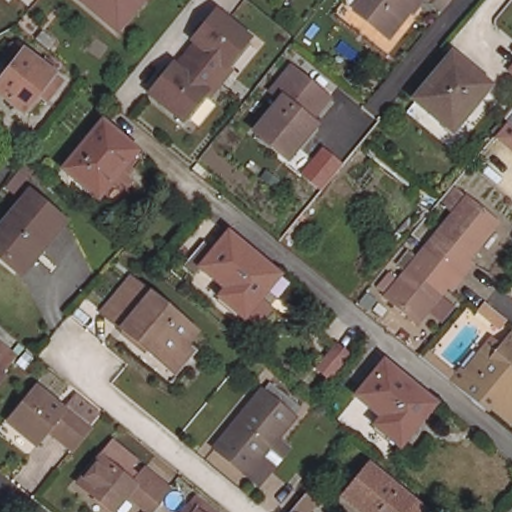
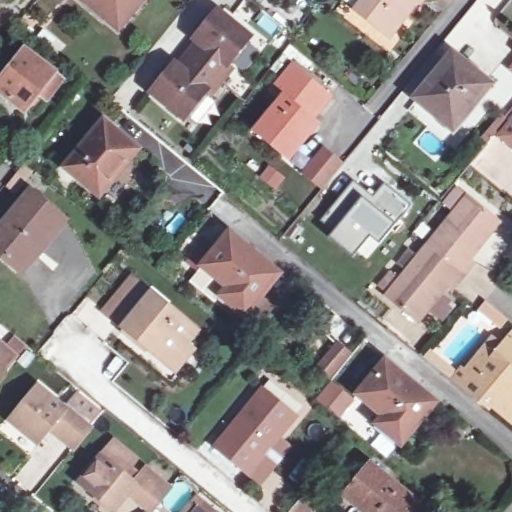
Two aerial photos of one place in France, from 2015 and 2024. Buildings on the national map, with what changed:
unchanged [(85,0),(146,0),(127,24),(121,30),(85,0)]
unchanged [(420,1),(387,40),(354,13),(364,0),(418,0),(420,1)]
unchanged [(189,53),(199,41),(195,37),(219,10),(252,35),(229,63),(232,66),(222,80),(189,53)]
unchanged [(54,72),(45,83),(50,87),(35,109),(30,105),(25,110),(0,91),(0,78),(23,48),(54,72)]
unchanged [(222,80),(212,92),(209,90),(185,117),(154,90),(177,61),(180,65),(189,53),(222,80)]
unchanged [(492,84),(478,102),(474,100),(452,125),(419,100),(455,55),(492,84)]
unchanged [(280,150),(255,129),(280,97),(271,90),(292,66),(327,95),(308,119),(315,124),(297,145),(287,156),(280,150)]
unchanged [(512,69),(512,72),(510,70),(512,69)]
new [(512,151),(495,136),(512,115),(512,151)]
unchanged [(135,151),(97,197),(65,169),(101,124),(135,151)]
new [(326,151),(342,165),(322,189),(307,175),(326,151)]
new [(383,182),(410,204),(365,260),(357,252),(352,258),(327,236),(315,225),(352,181),(365,191),(371,196),(383,182)]
unchanged [(465,260),(470,263),(460,276),(424,245),(453,213),(444,205),(457,189),(467,196),(497,223),(465,260)]
unchanged [(62,219),(23,269),(0,251),(0,230),(29,193),(62,219)]
unchanged [(248,313),(225,295),(233,286),(209,265),(204,270),(193,261),(211,240),(221,249),(235,233),(283,273),(248,313)]
unchanged [(448,290),(442,283),(409,320),(381,295),(383,291),(374,285),(387,270),(397,277),(424,245),(460,276),(448,290)]
unchanged [(194,332),(170,360),(152,345),(147,350),(105,312),(132,280),(194,332)]
unchanged [(490,408),(487,410),(449,378),(460,366),(467,371),(494,338),(503,345),(512,333),(512,418),(508,422),(490,408)]
unchanged [(320,367),(339,345),(351,355),(332,378),(320,367)]
unchanged [(430,401),(398,442),(375,421),(380,414),(357,393),(383,361),(430,401)]
unchanged [(0,384),(0,366),(9,373),(0,384)]
unchanged [(65,405),(67,407),(77,395),(100,415),(72,447),(47,426),(34,442),(9,421),(35,386),(62,409),(65,405)]
unchanged [(294,420),(247,477),(216,451),(263,395),(294,420)]
unchanged [(152,512),(143,512),(138,507),(126,498),(114,512),(107,512),(79,488),(111,448),(132,465),(121,480),(132,489),(144,475),(157,485),(167,493),(165,496),(152,512)]
unchanged [(426,512),(366,512),(345,496),(371,467),(427,511),(426,512)]
unchanged [(317,502),(309,512),(290,512),(305,493),(317,502)]
unchanged [(205,512),(186,512),(193,503),(205,512)]

